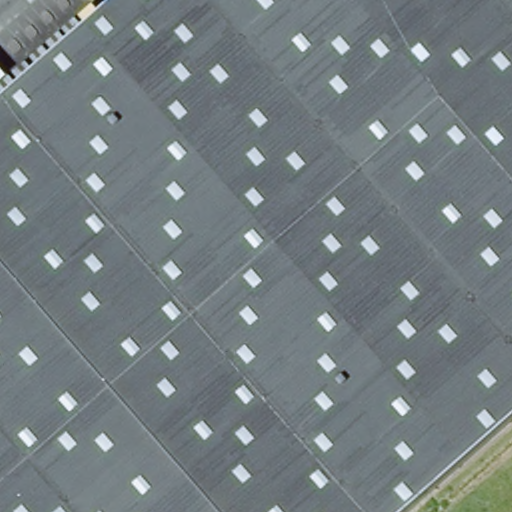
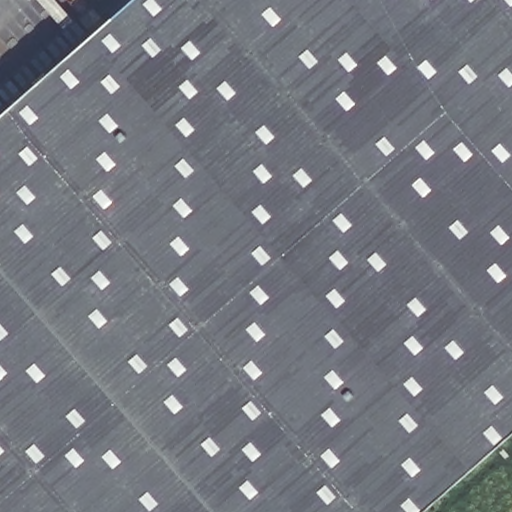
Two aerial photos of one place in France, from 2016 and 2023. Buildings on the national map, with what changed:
unchanged [(116,0),(512,0),(512,424),(412,512),(0,512),(0,102),(116,0)]

